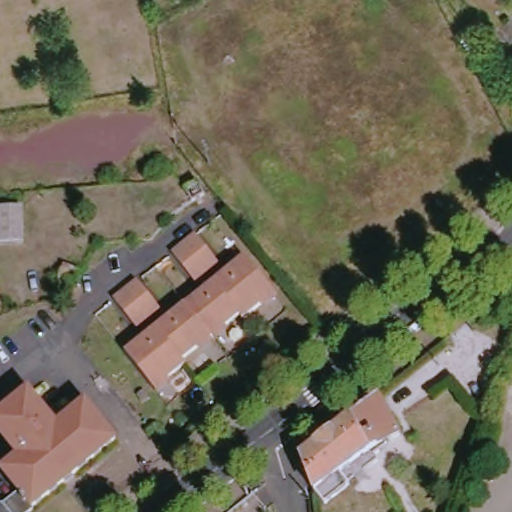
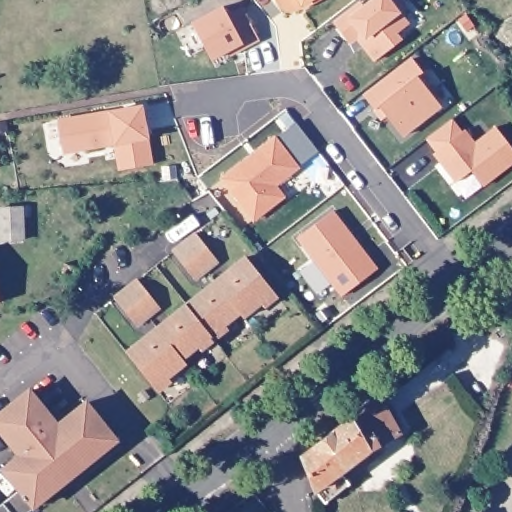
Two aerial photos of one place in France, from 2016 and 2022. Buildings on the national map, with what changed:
new [(303,1),(286,9),(279,0),(314,0),(305,5),(303,1)]
new [(336,21),(363,1),(366,5),(373,0),(405,0),(406,1),(398,7),(410,24),(398,33),(402,39),(377,59),(366,45),(359,35),(363,32),(351,41),(336,21)]
new [(225,5),(229,14),(243,6),(260,37),(245,46),(243,41),(213,57),(193,22),(225,5)]
new [(243,41),(245,46),(231,52),(229,48),(243,41)]
new [(414,57),(424,71),(419,75),(442,104),(404,134),(381,105),(376,108),(366,94),(414,57)]
new [(119,171),(115,146),(63,153),(58,119),(108,110),(143,104),(148,138),(153,165),(119,171)]
new [(381,105),(389,114),(384,118),(376,108),(381,105)]
new [(463,130),(465,127),(476,141),(497,124),(512,143),(512,162),(485,184),(473,169),(458,181),(443,160),(445,158),(428,136),(452,117),(463,130)]
new [(276,137),(299,166),(276,184),(284,195),(256,218),(224,177),(276,137)]
new [(439,150),(445,158),(443,160),(436,152),(439,150)]
unchanged [(186,186),(197,179),(206,194),(194,201),(186,186)]
unchanged [(19,202),(20,230),(0,233),(0,203),(19,202)]
new [(334,210),(378,268),(344,294),(299,236),(334,210)]
unchanged [(209,259),(187,277),(166,250),(178,241),(189,232),(209,259)]
unchanged [(238,256),(266,290),(234,315),(231,310),(202,333),(174,357),(176,360),(146,384),(120,351),(238,256)]
unchanged [(63,275),(69,262),(83,269),(77,281),(63,275)]
unchanged [(118,287),(131,279),(151,305),(129,322),(108,296),(118,287)]
unchanged [(295,453),(344,416),(343,414),(371,391),(393,430),(364,445),(306,488),(295,453)]
unchanged [(16,492),(0,472),(18,457),(15,454),(13,455),(0,438),(0,415),(26,393),(51,423),(49,425),(52,430),(83,405),(112,442),(29,510),(16,492)]
unchanged [(16,492),(29,510),(30,511),(30,512),(0,512),(0,506),(16,492)]

